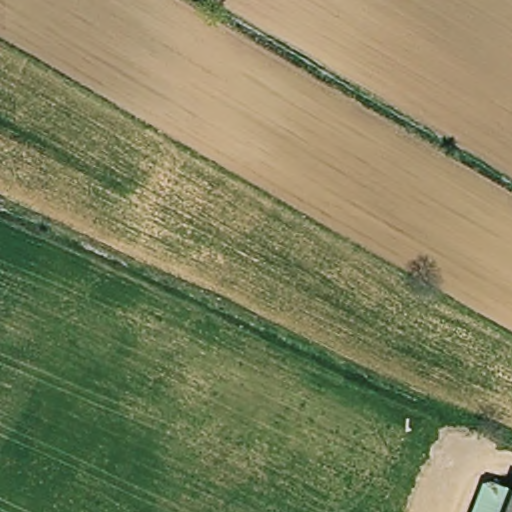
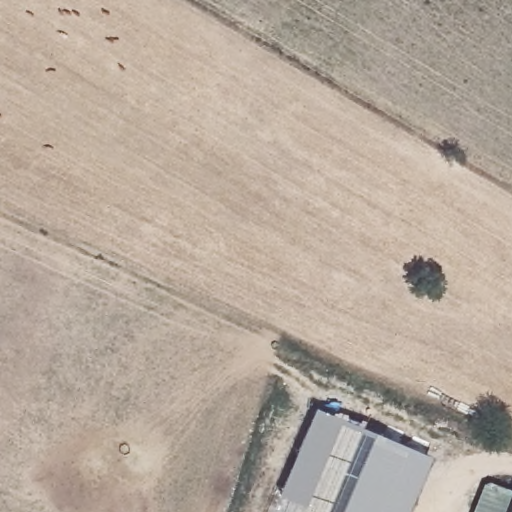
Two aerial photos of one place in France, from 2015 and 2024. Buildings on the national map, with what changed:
new [(431,457),(408,512),(269,512),(314,408),(431,457)]
new [(488,481),(508,487),(497,512),(472,512),(483,485),(488,481)]
unchanged [(508,487),(512,489),(512,512),(497,512),(508,487)]

